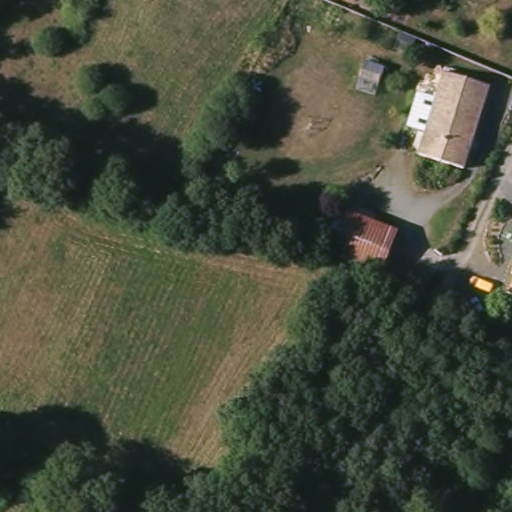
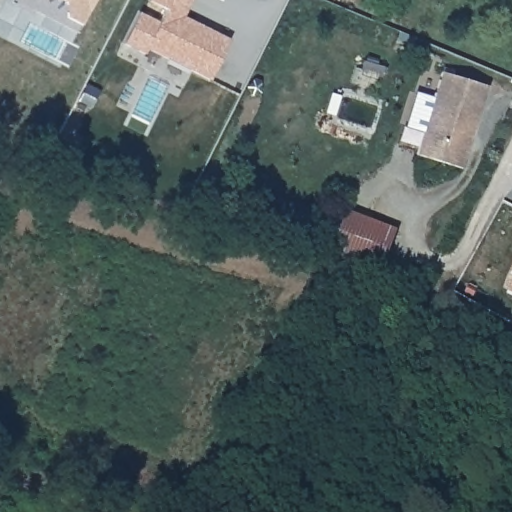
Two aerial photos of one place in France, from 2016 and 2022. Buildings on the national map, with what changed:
new [(231,40),(211,79),(148,48),(146,53),(125,43),(140,12),(161,22),(168,7),(155,0),(192,0),(185,16),(231,40)]
unchanged [(415,151),(448,71),(492,90),(459,170),(415,151)]
unchanged [(366,224),(350,267),(323,256),(338,213),(366,224)]
unchanged [(394,235),(377,278),(350,267),(366,224),(394,235)]

